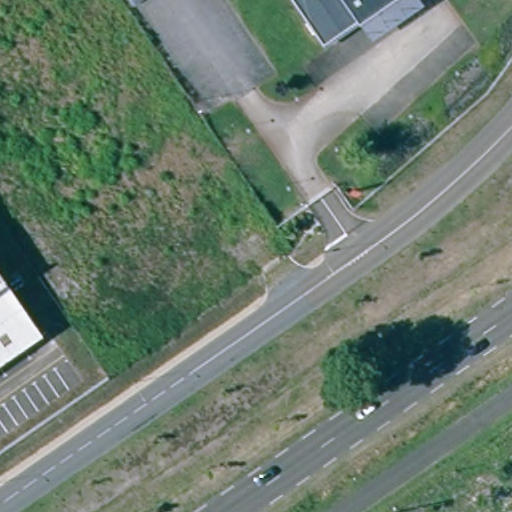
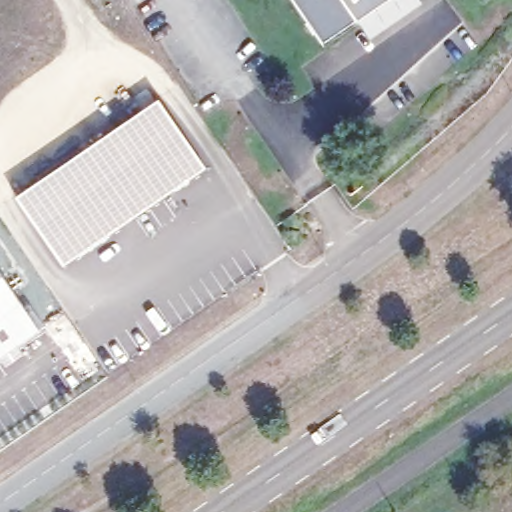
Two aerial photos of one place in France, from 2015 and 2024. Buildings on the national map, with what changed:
unchanged [(327,44),(297,0),(390,0),(327,44)]
new [(16,196),(158,97),(206,167),(63,265),(16,196)]
unchanged [(0,357),(0,270),(41,329),(0,357)]

